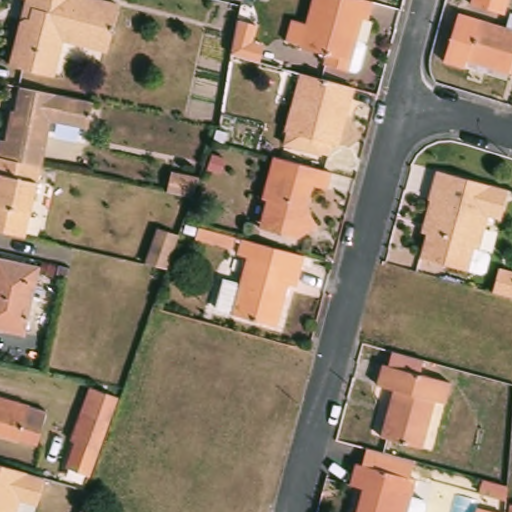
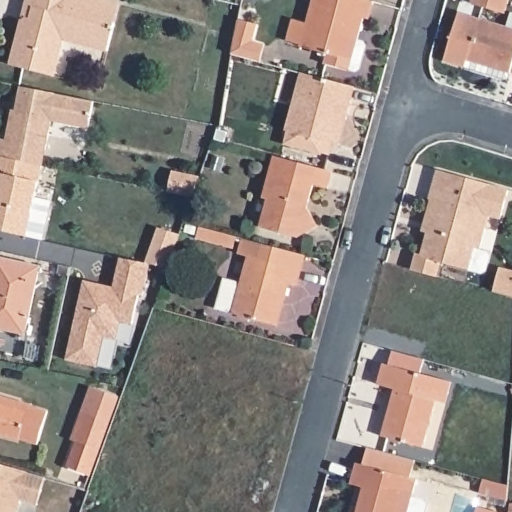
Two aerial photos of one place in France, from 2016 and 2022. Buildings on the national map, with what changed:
unchanged [(121,6),(117,24),(109,52),(66,41),(58,77),(13,65),(25,17),(33,19),(38,0),(97,0),(101,1),(121,6)]
unchanged [(368,22),(358,19),(355,31),(359,32),(359,33),(366,35),(368,38),(362,62),(359,64),(352,62),(352,63),(300,49),(301,47),(286,42),(291,21),(307,25),(314,0),(362,0),(373,3),(368,22)]
unchanged [(469,4),(471,0),(508,0),(504,15),(469,4)]
unchanged [(446,62),(449,54),(461,15),(507,29),(510,20),(512,15),(512,74),(510,73),(510,76),(507,82),(446,62)]
unchanged [(230,56),(237,22),(255,27),(251,44),(255,45),(263,47),(258,64),(251,62),(230,56)]
unchanged [(347,122),(342,121),(336,147),(285,133),(292,107),(296,109),(305,76),(355,90),(347,122)]
unchanged [(53,122),(43,167),(0,158),(0,156),(4,138),(9,139),(15,111),(26,112),(30,91),(96,104),(91,131),(53,122)]
unchanged [(0,232),(0,158),(43,167),(27,238),(0,232)]
unchanged [(263,220),(268,199),(263,198),(273,159),(331,174),(327,190),(312,187),(307,209),(316,228),(298,239),(287,236),(261,229),(263,220)]
unchanged [(483,254),(486,257),(482,272),(477,275),(464,271),(416,257),(423,235),(418,234),(427,201),(425,200),(433,172),(505,192),(497,220),(485,217),(475,250),(483,254)]
unchanged [(171,175),(199,181),(193,200),(167,194),(171,175)]
unchanged [(302,288),(293,286),(281,327),(238,316),(238,315),(221,311),(229,282),(246,287),(253,260),(243,257),(247,242),(310,258),(302,288)]
new [(84,283),(113,290),(120,260),(150,267),(143,298),(139,297),(132,327),(120,324),(116,342),(104,339),(97,369),(66,362),(84,283)]
unchanged [(0,261),(40,269),(25,337),(0,331),(0,261)]
unchanged [(493,293),(497,277),(500,270),(512,273),(512,299),(493,293)]
unchanged [(399,395),(382,390),(388,369),(457,387),(451,408),(443,406),(431,453),(386,441),(399,395)]
unchanged [(67,468),(76,444),(71,442),(90,388),(119,398),(90,477),(67,468)]
unchanged [(20,442),(0,436),(0,399),(30,407),(46,411),(37,446),(20,442)]
unchanged [(360,492),(349,489),(355,467),(361,468),(366,452),(412,465),(407,481),(415,482),(411,500),(424,503),(427,508),(426,512),(355,512),(360,492)]
unchanged [(0,464),(45,477),(35,506),(19,501),(15,512),(0,512),(0,464)]
unchanged [(477,501),(479,484),(504,491),(502,507),(477,501)]
unchanged [(506,511),(512,511),(512,512),(506,512),(506,511)]

